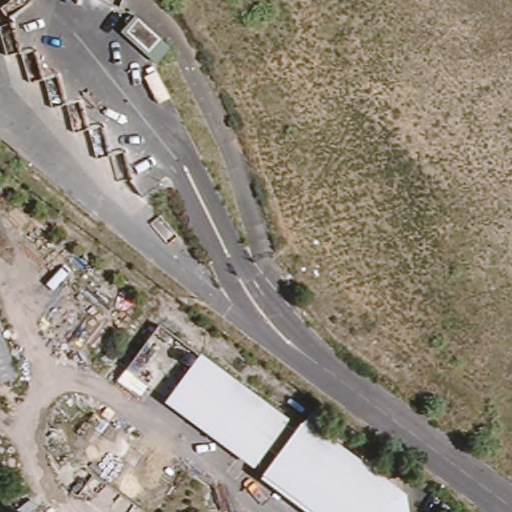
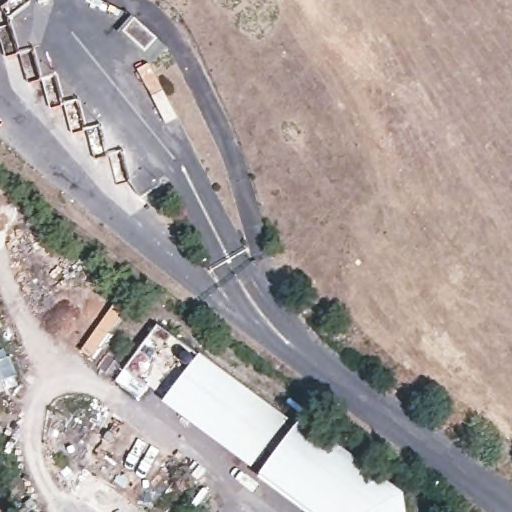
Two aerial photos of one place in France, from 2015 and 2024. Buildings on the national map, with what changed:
unchanged [(118,33),(133,14),(166,48),(154,63),(118,33)]
unchanged [(399,512),(312,512),(261,474),(276,456),(265,448),(255,462),(168,398),(199,356),(199,355),(286,419),(283,423),(294,432),(299,426),(301,427),(398,499),(399,512)]
unchanged [(144,385),(136,398),(115,382),(124,370),(144,385)]

